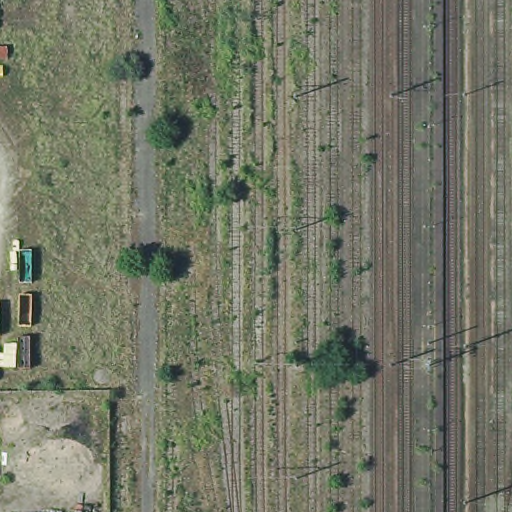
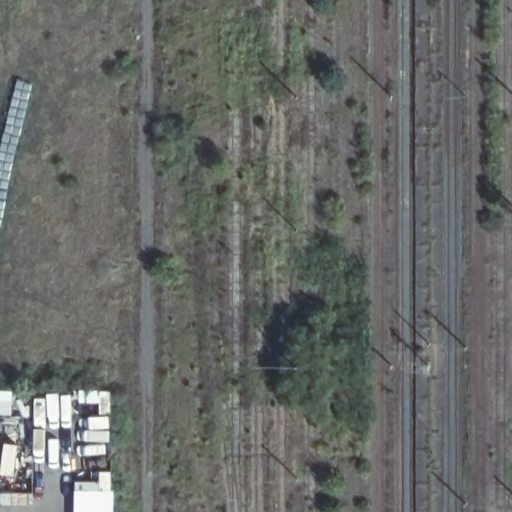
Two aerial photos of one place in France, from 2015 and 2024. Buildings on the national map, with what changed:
new [(74,480),(97,480),(98,471),(111,471),(112,489),(114,489),(113,512),(74,512),(74,480)]

